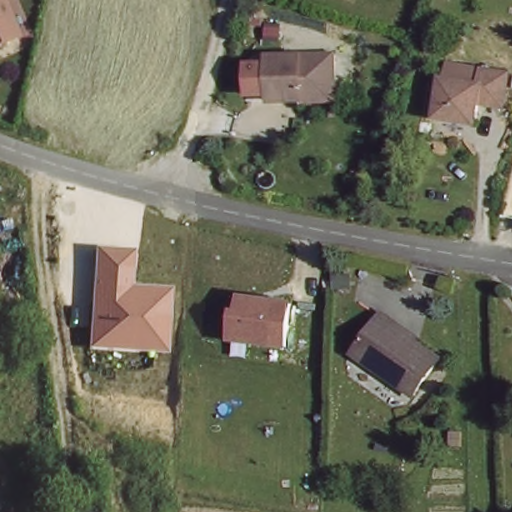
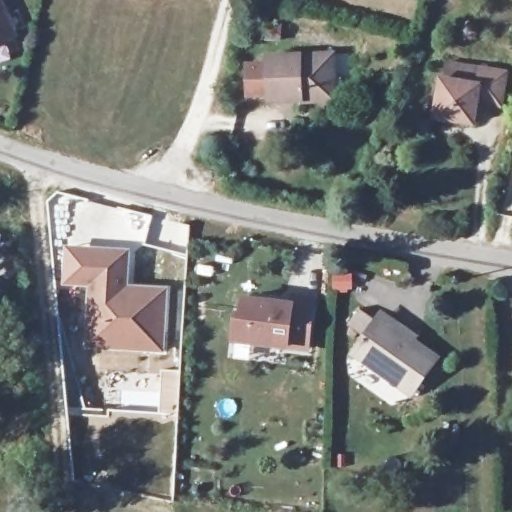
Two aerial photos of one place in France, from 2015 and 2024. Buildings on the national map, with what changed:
unchanged [(18,43),(0,50),(0,0),(2,0),(18,43)]
unchanged [(304,102),(304,100),(272,101),(268,57),(333,54),(336,90),(337,100),(304,102)]
unchanged [(452,54),(510,76),(498,110),(475,100),(468,120),(432,107),(442,70),(446,71),(452,54)]
unchanged [(164,353),(87,350),(91,247),(130,250),(128,285),(167,288),(164,353)]
unchanged [(291,348),(231,342),(234,310),(239,310),(241,295),(296,304),(291,348)]
unchanged [(408,397),(351,355),(379,315),(435,358),(408,397)]

